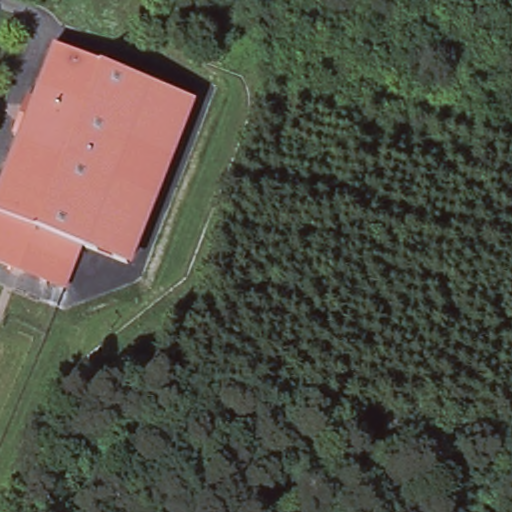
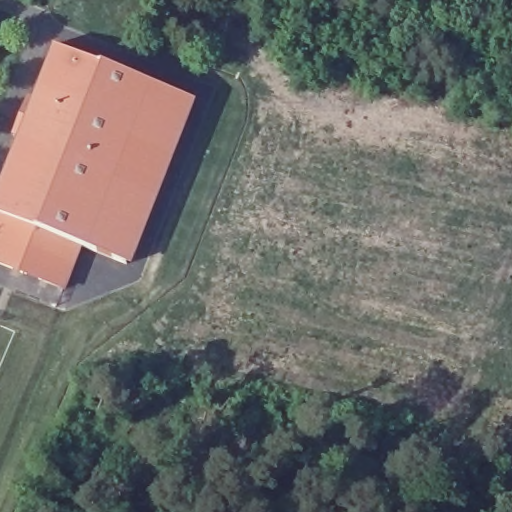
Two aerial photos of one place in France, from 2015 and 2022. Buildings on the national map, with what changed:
unchanged [(17,134),(32,99),(37,101),(60,46),(196,102),(195,104),(194,103),(127,265),(129,265),(129,266),(82,247),(0,214),(0,192),(23,136),(17,134)]
unchanged [(0,214),(82,247),(65,290),(40,280),(15,270),(0,264),(0,214)]

